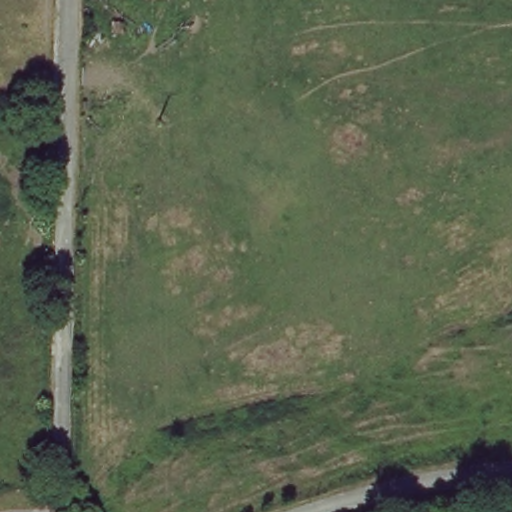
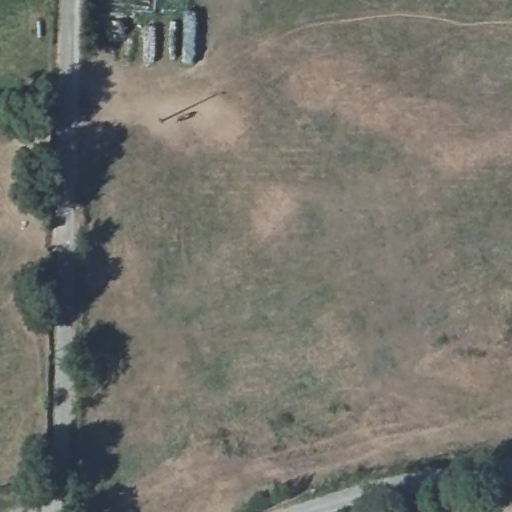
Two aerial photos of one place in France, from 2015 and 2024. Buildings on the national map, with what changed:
[]

